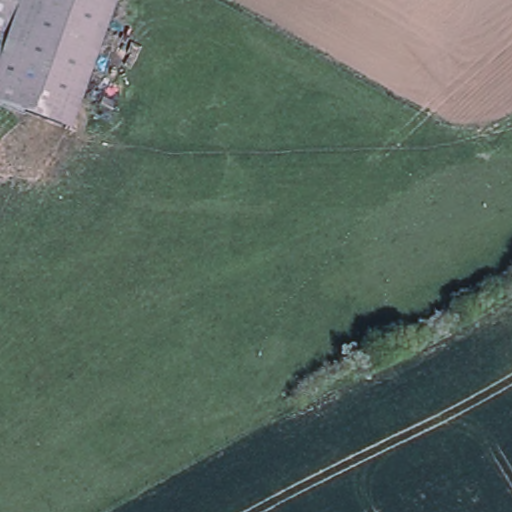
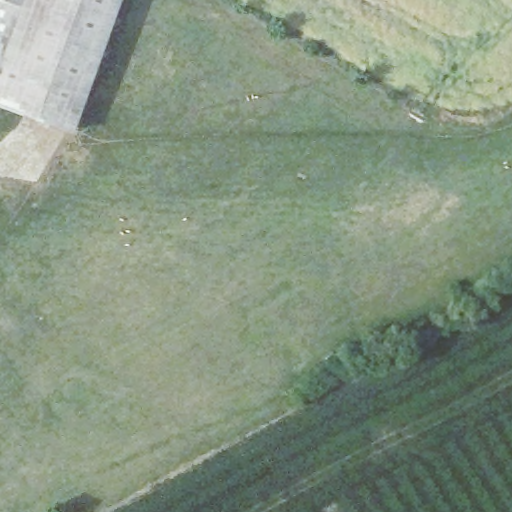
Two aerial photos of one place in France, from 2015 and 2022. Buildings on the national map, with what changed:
unchanged [(6,41),(0,39),(0,0),(21,0),(6,41)]
unchanged [(68,128),(0,104),(0,58),(6,41),(21,0),(115,0),(68,128)]
unchanged [(6,41),(0,58),(0,39),(6,41)]

